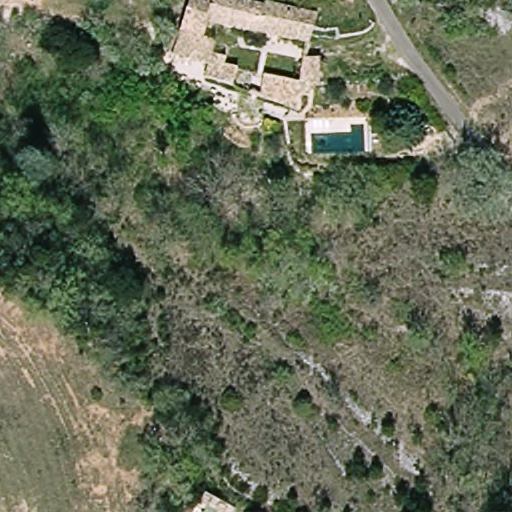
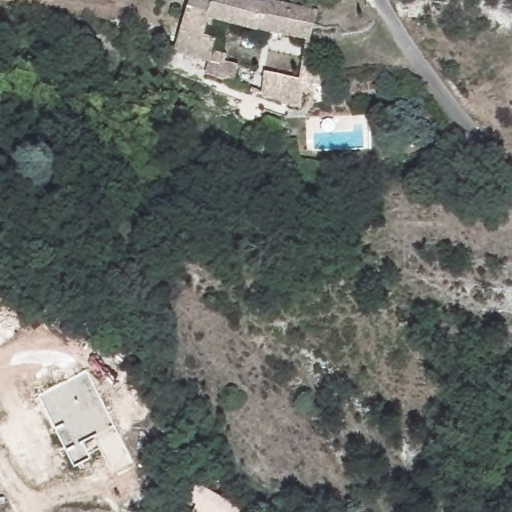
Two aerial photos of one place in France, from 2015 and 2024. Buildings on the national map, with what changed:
unchanged [(257,1),(311,14),(307,45),(207,16),(201,37),(210,40),(207,55),(221,60),(220,66),(231,71),(228,86),(200,76),(205,64),(167,49),(182,0),(236,0),(256,6),(257,1)]
unchanged [(259,75),(299,82),(301,57),(320,60),(317,85),(306,85),(305,93),(297,91),(295,108),(254,96),(259,75)]
new [(82,443),(90,459),(74,467),(37,396),(87,370),(114,426),(94,437),(82,443)]
new [(196,506),(187,501),(196,485),(237,507),(246,512),(193,512),(196,506)]

